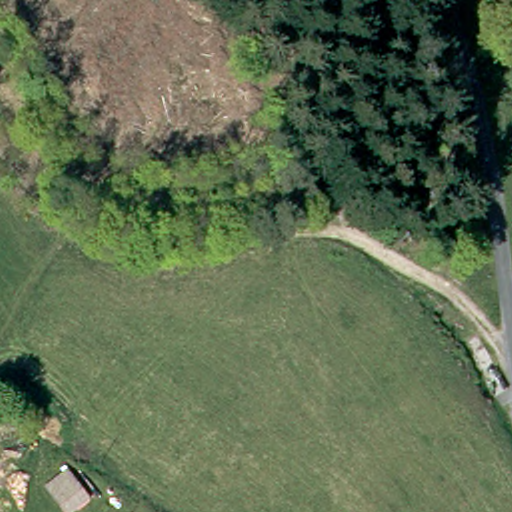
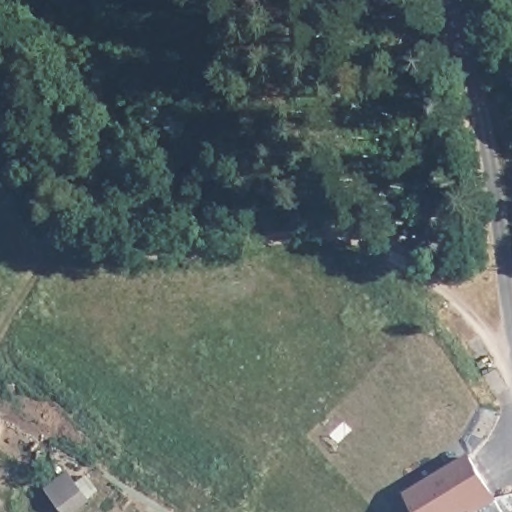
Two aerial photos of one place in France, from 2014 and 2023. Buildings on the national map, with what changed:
new [(457,512),(417,512),(406,494),(469,457),(492,499),(471,511),(469,506),(460,511),(457,512)]
new [(71,512),(67,512),(57,499),(49,487),(68,473),(77,484),(88,499),(71,512)]

